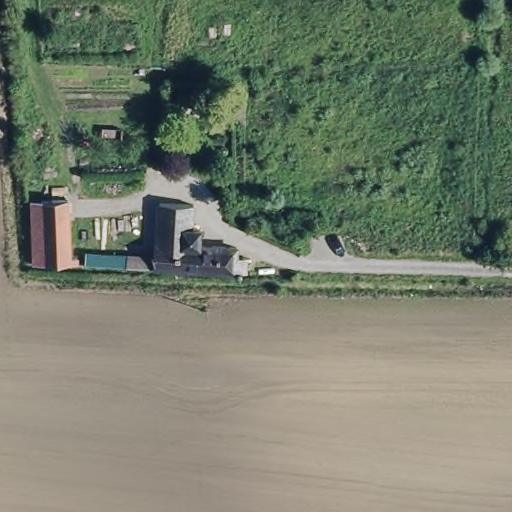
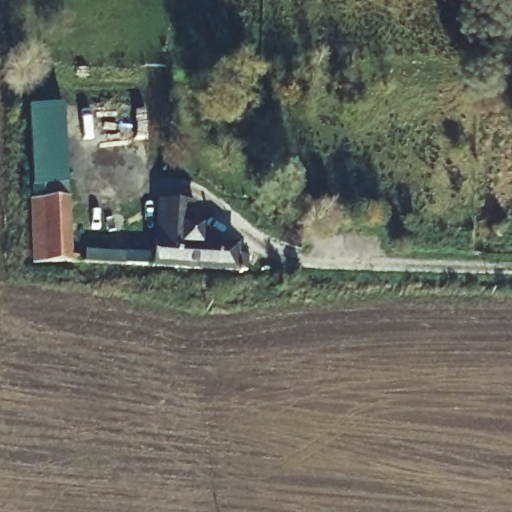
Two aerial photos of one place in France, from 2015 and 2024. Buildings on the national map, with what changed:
unchanged [(227,98),(239,97),(238,121),(227,121),(227,98)]
new [(67,185),(32,187),(28,107),(63,105),(67,185)]
unchanged [(154,199),(194,201),(193,217),(202,218),(201,245),(243,249),(240,273),(150,270),(154,199)]
unchanged [(65,201),(66,255),(74,255),(73,261),(27,260),(26,200),(65,201)]

